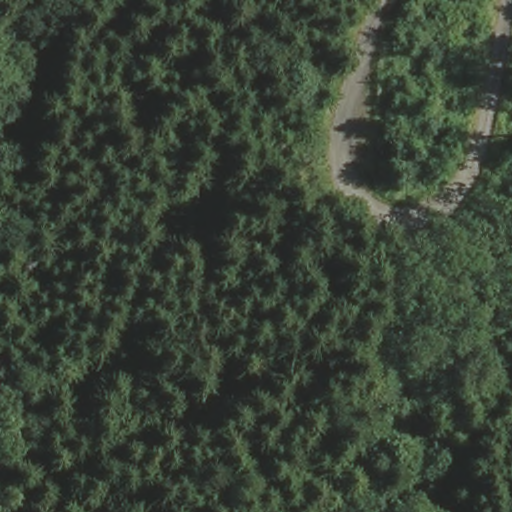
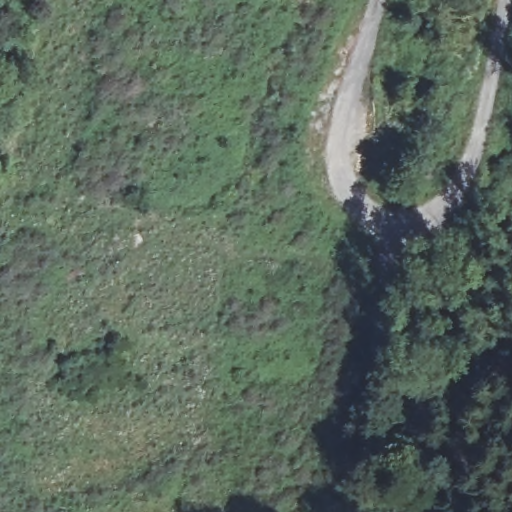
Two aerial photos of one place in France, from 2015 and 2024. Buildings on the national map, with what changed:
[]

